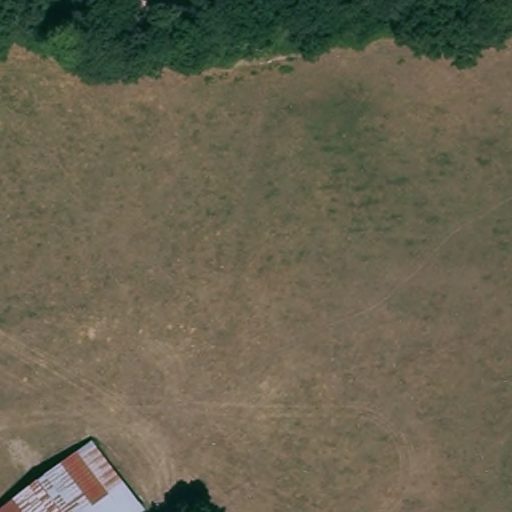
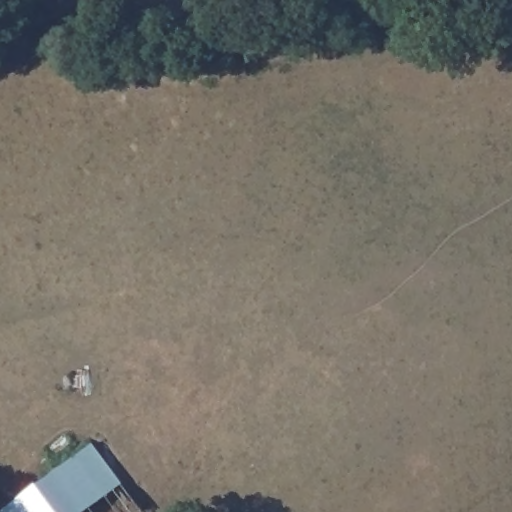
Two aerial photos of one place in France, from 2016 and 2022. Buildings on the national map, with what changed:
unchanged [(140,506),(133,512),(0,512),(0,509),(8,502),(88,439),(140,506)]

